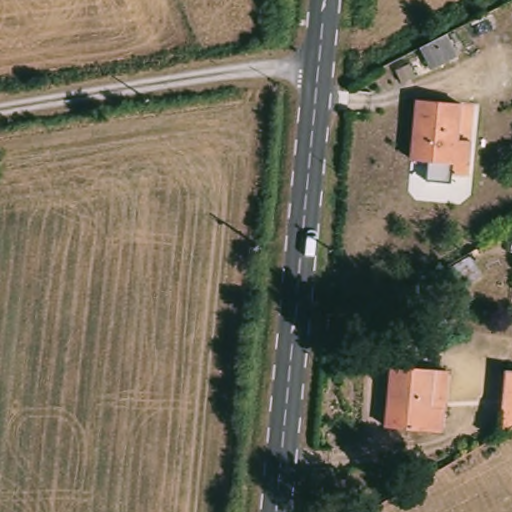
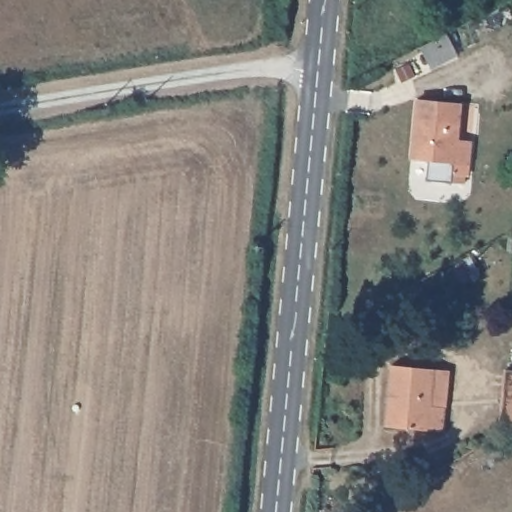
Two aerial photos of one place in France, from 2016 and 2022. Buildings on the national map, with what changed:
unchanged [(447,35),(457,55),(431,69),(421,49),(447,35)]
unchanged [(418,102),(460,106),(457,142),(471,143),(467,175),(455,174),(455,165),(412,161),(418,102)]
unchanged [(448,374),(445,411),(442,432),(386,427),(392,368),(434,372),(448,374)]
unchanged [(500,437),(506,372),(512,372),(512,430),(500,437)]

